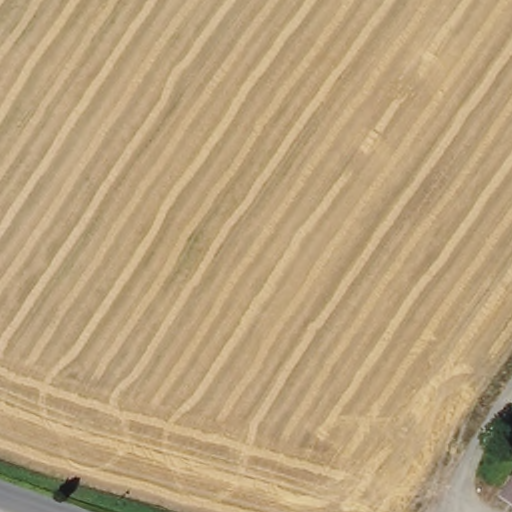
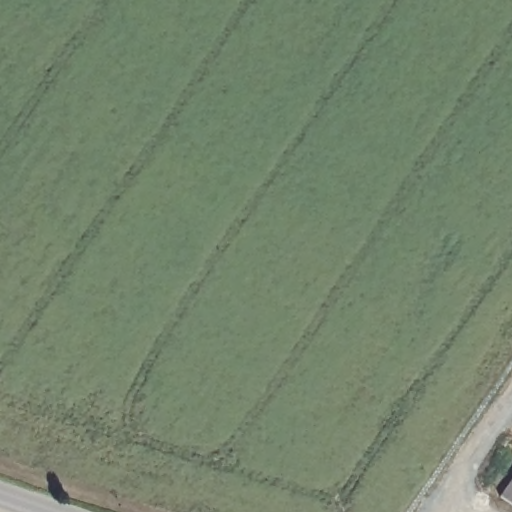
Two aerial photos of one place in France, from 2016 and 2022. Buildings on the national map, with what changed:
unchanged [(512,477),(512,502),(500,494),(512,477)]

